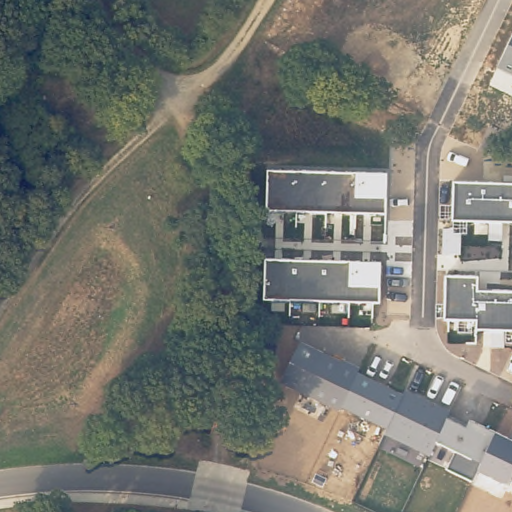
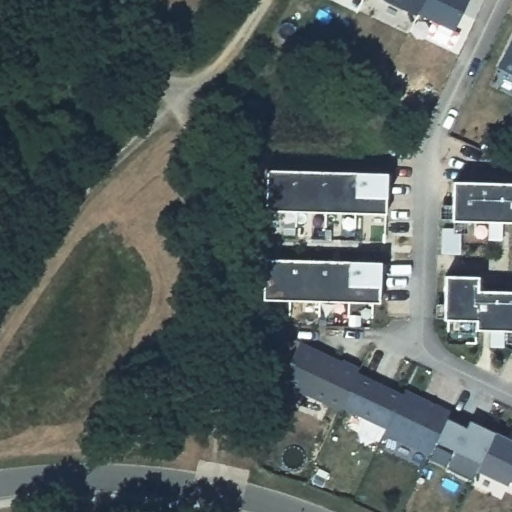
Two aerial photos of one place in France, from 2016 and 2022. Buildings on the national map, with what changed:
new [(422,15),(421,18),(384,0),(430,0),(422,15)]
new [(430,0),(474,0),(458,32),(422,15),(430,0)]
unchanged [(499,69),(512,41),(512,75),(499,69)]
unchanged [(275,212),(276,171),(397,174),(396,216),(275,212)]
unchanged [(512,182),(512,221),(452,221),(455,180),(512,182)]
unchanged [(264,300),(265,258),(382,261),(381,304),(264,300)]
unchanged [(479,276),(480,287),(510,290),(512,280),(512,331),(475,330),(475,320),(445,320),(446,275),(479,276)]
unchanged [(511,481),(510,485),(478,471),(473,480),(448,470),(455,449),(436,441),(430,456),(385,434),(387,428),(283,382),(304,341),(335,355),(331,360),(405,393),(408,388),(452,410),(448,418),(469,427),(472,421),(512,440),(512,482),(511,481)]

